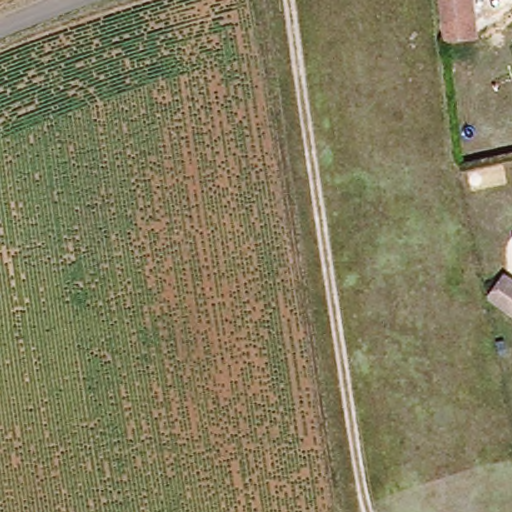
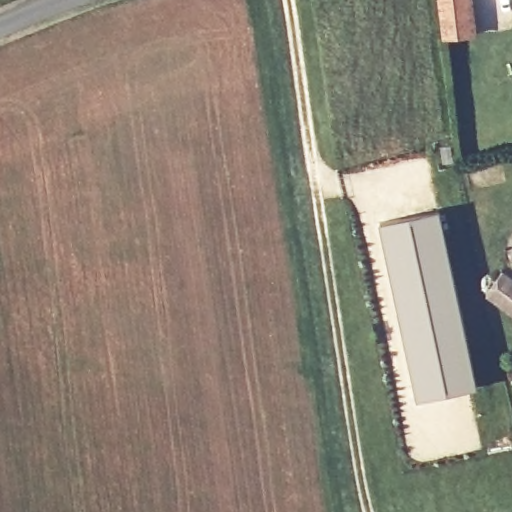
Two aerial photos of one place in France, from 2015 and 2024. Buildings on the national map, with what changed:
unchanged [(444,35),(441,0),(471,0),(473,33),(444,35)]
new [(374,239),(371,224),(440,209),(478,387),(410,404),(407,391),(398,392),(380,315),(365,239),(374,239)]
unchanged [(512,275),(512,306),(493,292),(508,272),(512,275)]

